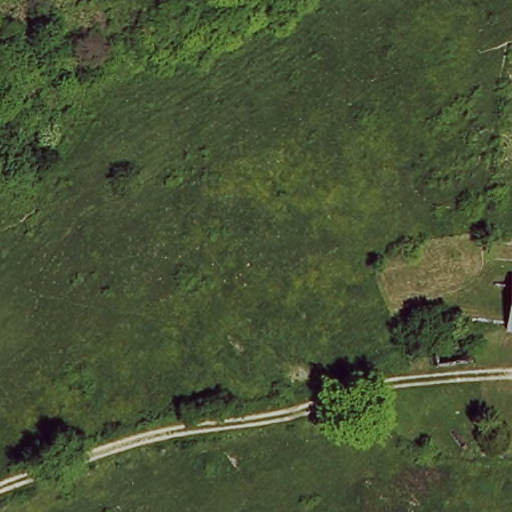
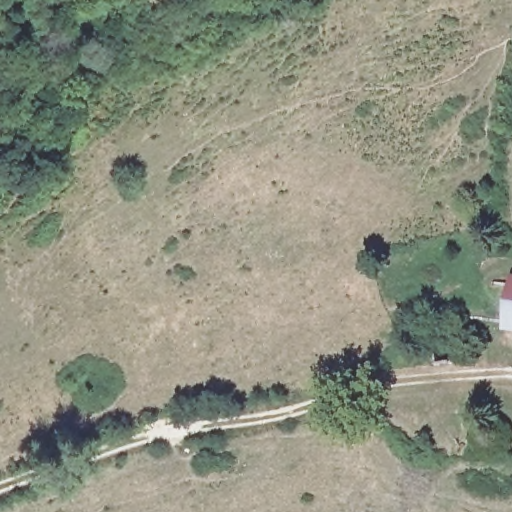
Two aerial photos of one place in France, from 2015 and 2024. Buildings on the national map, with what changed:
unchanged [(512,288),(512,327),(507,327),(512,288)]

